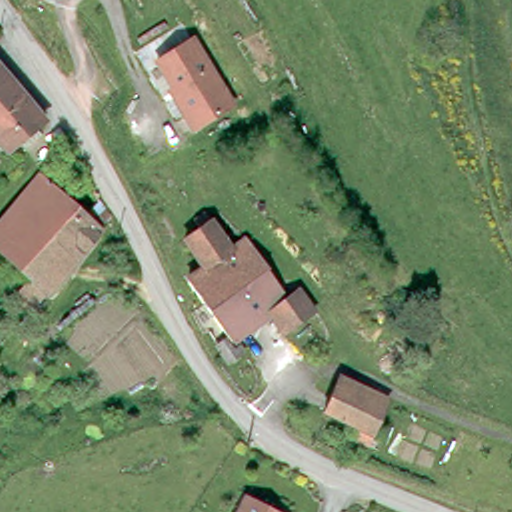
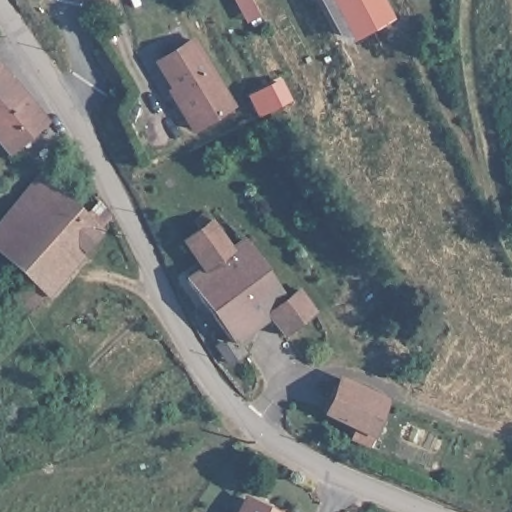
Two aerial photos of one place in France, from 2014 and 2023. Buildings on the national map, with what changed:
new [(258,16),(245,22),(233,0),(250,0),(258,16)]
new [(395,17),(341,46),(317,0),(385,0),(395,17)]
unchanged [(166,90),(171,86),(155,58),(195,35),(236,107),(193,131),(166,90)]
unchanged [(21,144),(16,137),(4,146),(0,142),(0,71),(39,117),(32,123),(38,130),(21,144)]
new [(249,94),(282,80),(291,101),(260,116),(249,94)]
unchanged [(0,252),(0,225),(42,177),(87,217),(102,201),(113,220),(101,230),(103,232),(48,294),(38,305),(24,290),(32,281),(0,252)]
unchanged [(311,311),(280,335),(264,315),(233,340),(240,352),(225,363),(197,320),(199,319),(206,314),(184,281),(196,273),(200,270),(181,239),(197,230),(195,226),(192,220),(202,214),(227,250),(229,249),(242,240),(270,280),(283,272),(296,289),(311,310),(311,311)]
unchanged [(353,438),(359,427),(325,411),(336,385),(341,375),(392,399),(387,409),(370,445),(353,438)]
unchanged [(240,512),(247,498),(273,512),(240,512)]

